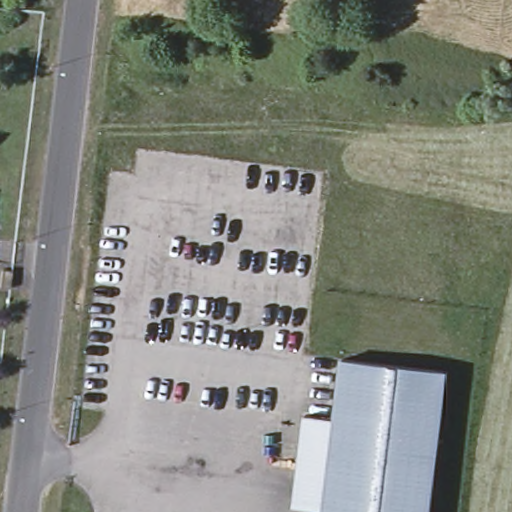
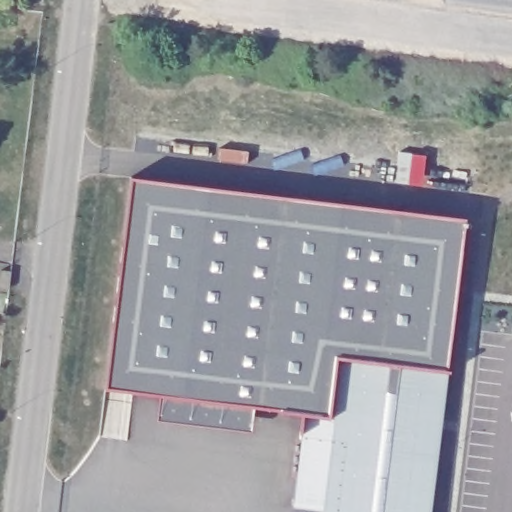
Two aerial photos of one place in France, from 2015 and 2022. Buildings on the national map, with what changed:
new [(295,504),(302,443),(305,414),(252,406),(250,431),(157,419),(160,394),(106,387),(132,178),(466,217),(447,369),(430,512),(324,512),(324,508),(295,504)]
demolished [(342,356),(447,369),(430,512),(324,512),(324,508),(332,447),(335,417),(342,356)]
demolished [(295,504),(302,443),(332,447),(324,508),(295,504)]

